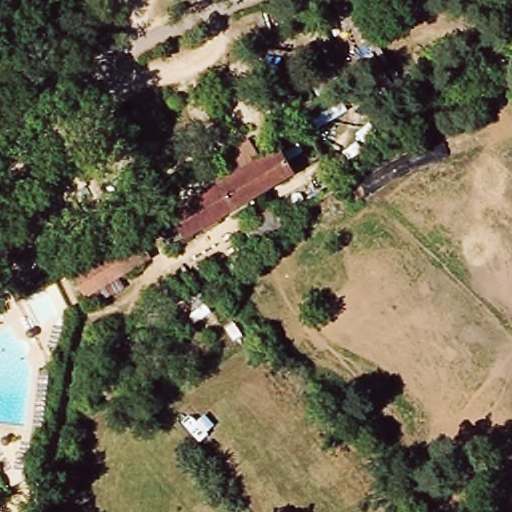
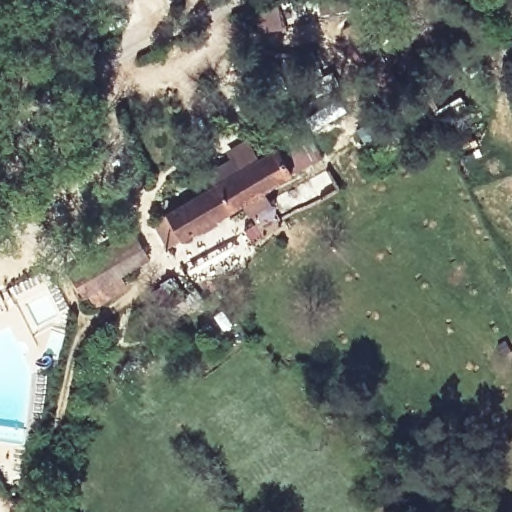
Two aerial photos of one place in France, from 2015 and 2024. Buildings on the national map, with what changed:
unchanged [(164,206),(180,194),(189,205),(281,145),(297,170),(268,189),(176,245),(160,220),(169,215),(164,206)]
unchanged [(245,230),(275,208),(283,221),(255,241),(245,230)]
unchanged [(78,270),(135,232),(152,260),(119,281),(114,272),(88,286),(78,270)]
unchanged [(189,306),(183,299),(165,311),(159,305),(152,296),(164,288),(161,285),(173,276),(185,295),(195,290),(200,296),(189,306)]
unchanged [(216,432),(230,455),(212,467),(199,444),(216,432)]
unchanged [(244,475),(259,496),(242,509),(227,486),(244,475)]

